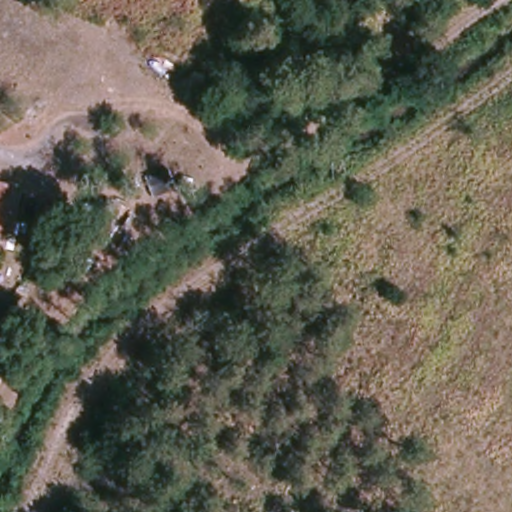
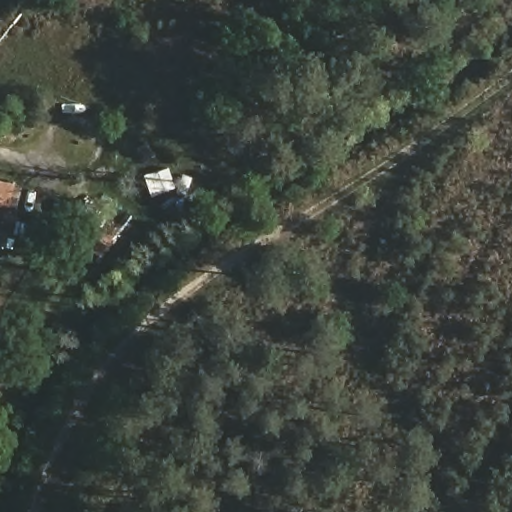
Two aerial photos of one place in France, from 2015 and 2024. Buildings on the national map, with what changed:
unchanged [(12,186),(2,232),(0,232),(0,183),(12,186)]

